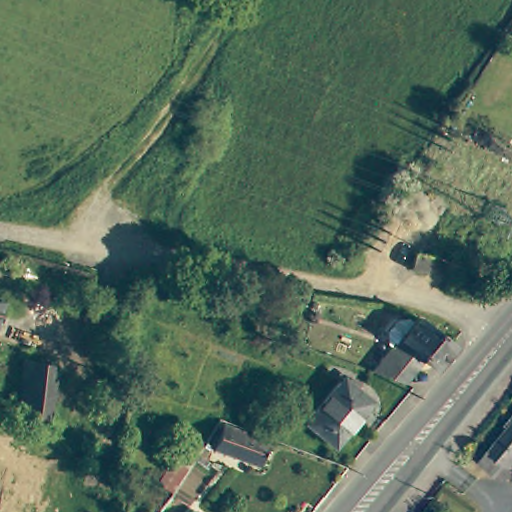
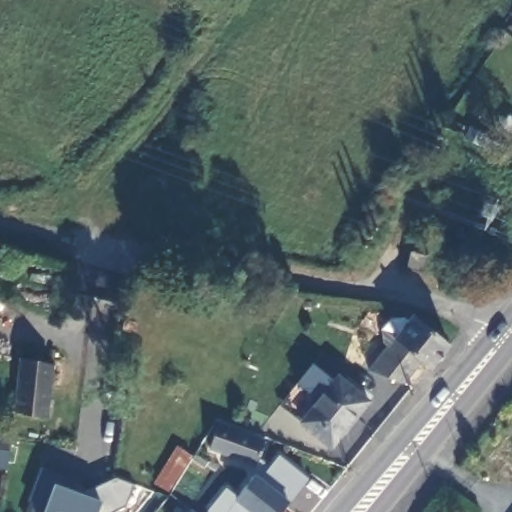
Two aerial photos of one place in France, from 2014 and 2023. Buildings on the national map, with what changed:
unchanged [(430,262),(425,278),(410,273),(414,257),(430,262)]
unchanged [(454,345),(437,366),(434,365),(432,363),(430,365),(423,360),(406,381),(374,369),(419,313),(454,345)]
unchanged [(55,368),(49,420),(19,415),(25,361),(55,368)]
unchanged [(370,404),(333,449),(301,423),(309,415),(338,378),(370,404)]
unchanged [(267,440),(263,450),(262,449),(258,459),(213,443),(215,438),(221,417),(266,432),(267,432),(265,440),(267,440)]
unchanged [(484,460),(511,428),(512,427),(512,474),(508,479),(484,460)]
unchanged [(191,457),(170,492),(167,491),(156,484),(178,448),(191,457)]
new [(282,512),(210,512),(207,510),(226,487),(237,495),(256,471),(263,477),(279,453),(309,478),(282,512)]
new [(128,505),(112,512),(30,512),(33,502),(28,500),(41,466),(76,479),(77,488),(89,494),(117,477),(135,483),(128,505)]
unchanged [(202,512),(190,512),(195,506),(202,512)]

